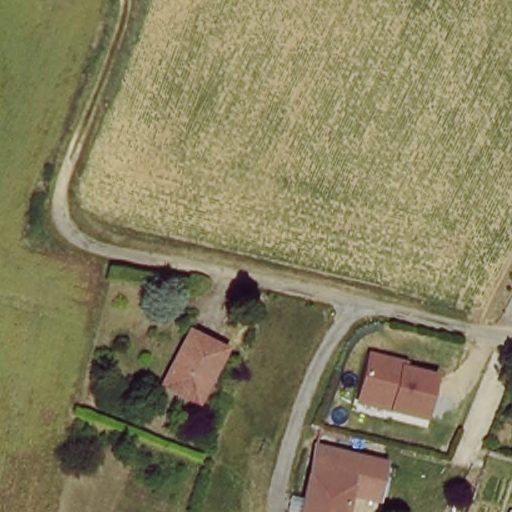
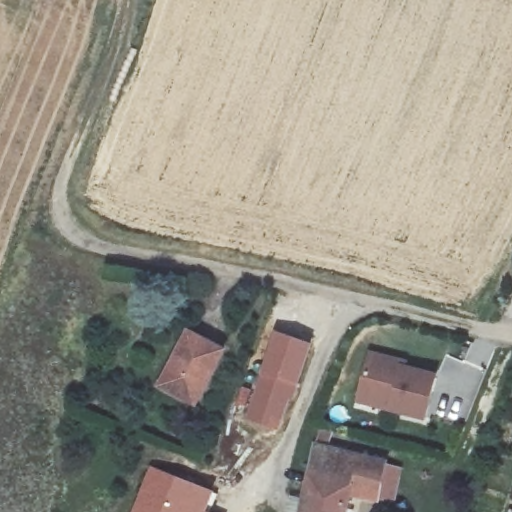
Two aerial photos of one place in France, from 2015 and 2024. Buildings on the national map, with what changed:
new [(276,331),(316,345),(302,385),(297,383),(280,432),(248,420),(276,331)]
unchanged [(225,353),(197,407),(161,388),(189,333),(225,353)]
unchanged [(359,403),(371,352),(414,361),(413,367),(440,373),(429,420),(359,403)]
unchanged [(316,452),(320,431),(392,447),(387,469),(316,452)]
unchanged [(378,507),(355,500),(352,512),(302,512),(316,452),(387,469),(378,507)]
new [(216,491),(208,512),(131,512),(151,465),(216,491)]
unchanged [(511,512),(512,511),(512,512),(511,512)]

